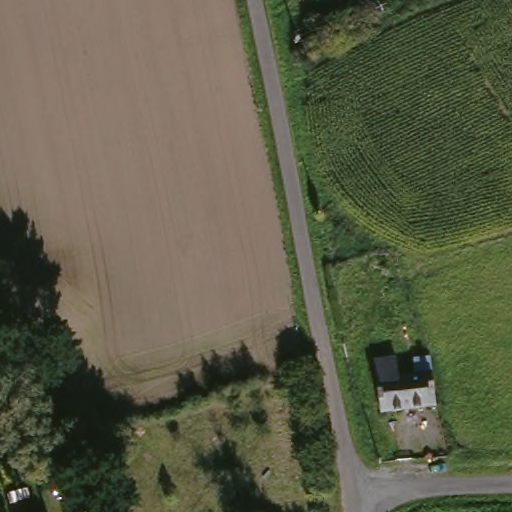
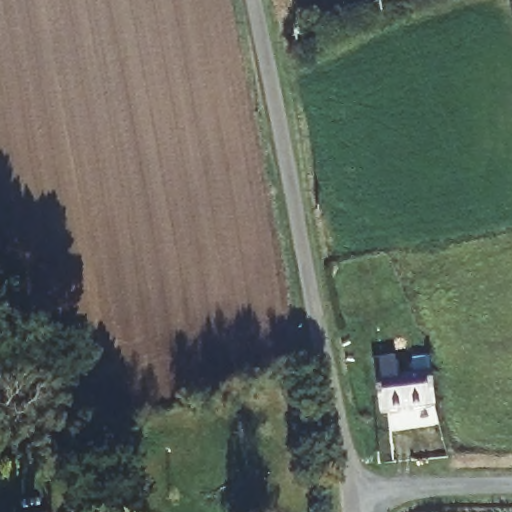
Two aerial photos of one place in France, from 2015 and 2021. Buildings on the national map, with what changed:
unchanged [(443,367),(445,406),(386,412),(382,380),(380,358),(400,355),(403,377),(424,375),(423,361),(440,360),(443,367)]

